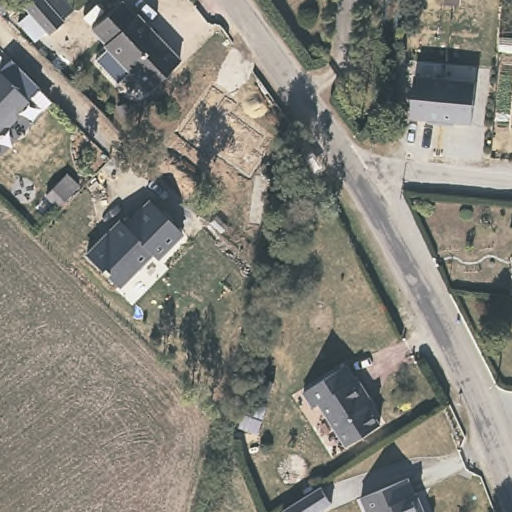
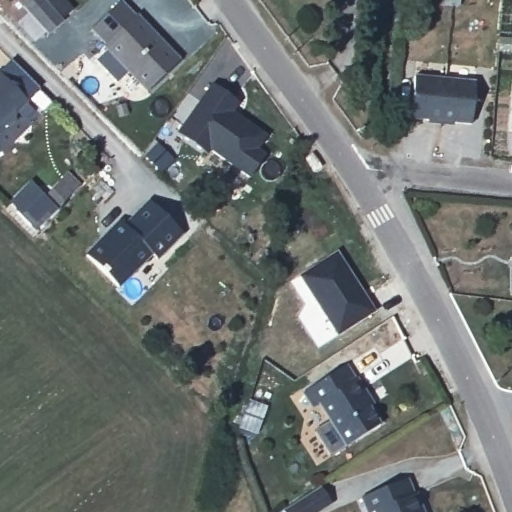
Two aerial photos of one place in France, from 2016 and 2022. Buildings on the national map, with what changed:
unchanged [(62,21),(49,34),(46,31),(36,40),(17,19),(27,10),(21,4),(24,0),(43,0),(62,21)]
unchanged [(137,22),(141,19),(181,64),(147,94),(107,49),(112,44),(97,27),(122,5),(137,22)]
unchanged [(1,70),(29,99),(17,111),(17,116),(10,124),(3,125),(0,127),(0,70),(1,70)]
unchanged [(441,116),(437,116),(431,119),(411,116),(415,75),(446,78),(441,116)]
unchanged [(476,81),(471,124),(451,121),(445,117),(441,116),(446,78),(476,81)]
new [(213,80),(240,99),(234,108),(267,132),(258,145),(266,151),(250,174),(211,146),(208,150),(178,129),(213,80)]
unchanged [(80,185),(57,208),(45,196),(67,174),(80,185)]
unchanged [(182,231),(156,256),(151,251),(117,284),(86,252),(102,236),(103,239),(109,233),(109,230),(121,219),(126,224),(150,199),(182,231)]
new [(335,250),(375,311),(337,335),(298,275),(335,250)]
unchanged [(352,381),(362,396),(370,407),(365,411),(376,427),(343,448),(316,407),(310,411),(298,396),(340,367),(351,382),(352,381)]
unchanged [(270,407),(260,435),(240,430),(251,402),(270,407)]
unchanged [(418,487),(425,505),(420,508),(421,512),(377,512),(375,507),(368,510),(362,492),(408,474),(415,490),(418,487)]
unchanged [(320,485),(332,502),(317,512),(284,512),(283,511),(311,491),(320,485)]

